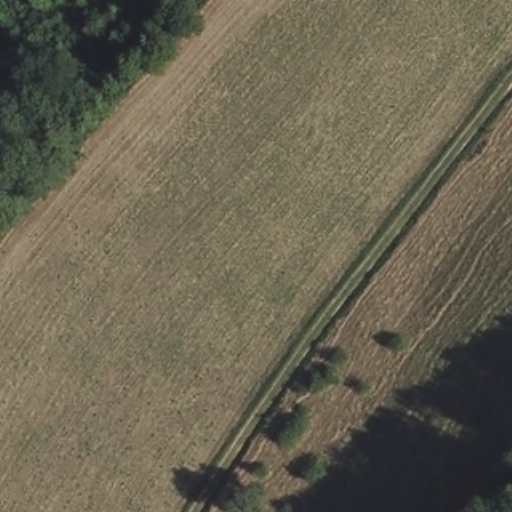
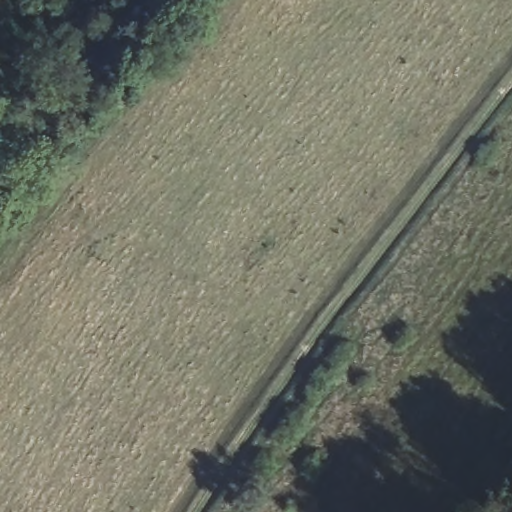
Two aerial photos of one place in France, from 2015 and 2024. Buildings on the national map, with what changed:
[]

